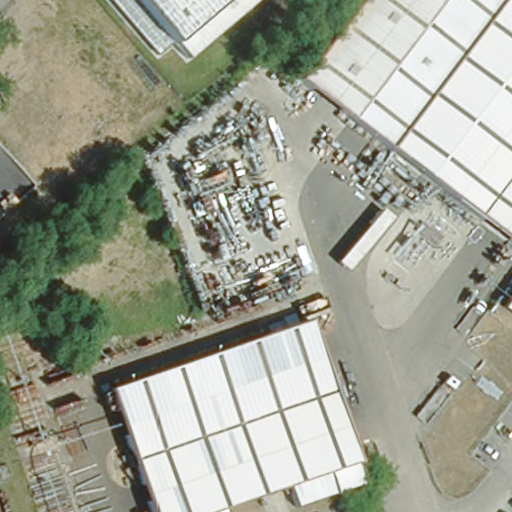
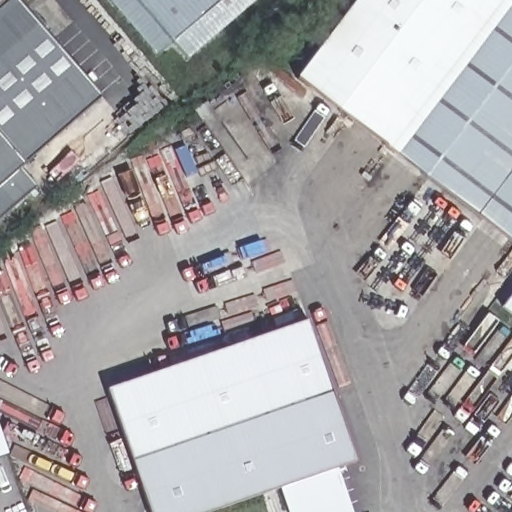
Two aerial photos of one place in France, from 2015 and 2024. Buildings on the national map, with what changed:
new [(103,98),(24,164),(21,166),(37,186),(0,219),(0,0),(18,0),(103,98)]
unchanged [(180,52),(167,35),(152,46),(113,0),(242,0),(180,52)]
unchanged [(295,72),(347,0),(423,0),(361,80),(342,104),(295,72)]
unchanged [(370,125),(342,104),(361,80),(423,0),(512,0),(512,238),(490,221),(424,169),(393,144),(370,125)]
unchanged [(307,315),(321,353),(336,397),(346,425),(356,465),(341,472),(357,512),(287,512),(279,488),(205,512),(153,512),(151,508),(110,387),(307,315)]

